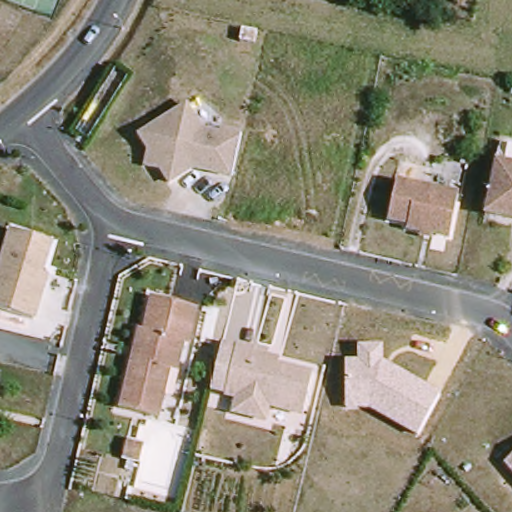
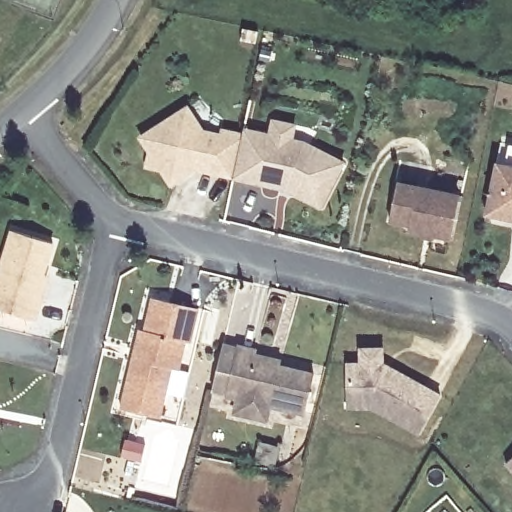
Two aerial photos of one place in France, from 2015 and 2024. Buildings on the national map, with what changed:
unchanged [(167,181),(157,166),(143,163),(146,148),(137,134),(184,104),(199,127),(217,131),(218,126),(238,131),(235,149),(230,173),(210,169),(190,165),(167,181)]
new [(245,126),(268,132),(272,117),(296,122),(293,138),(346,159),(322,210),(285,189),(234,178),(245,126)]
unchanged [(492,216),(507,144),(512,145),(512,220),(492,216)]
unchanged [(451,240),(410,231),(410,226),(390,222),(398,185),(460,197),(451,240)]
unchanged [(48,286),(38,320),(0,308),(0,284),(17,231),(57,243),(45,280),(48,286)]
unchanged [(200,310),(192,344),(187,343),(180,372),(173,370),(161,420),(121,410),(133,359),(140,331),(145,332),(153,299),(200,310)]
unchanged [(235,409),(238,395),(226,392),(238,342),(257,347),(256,351),(268,354),(281,357),(280,363),(315,371),(305,410),(271,402),(267,417),(235,409)]
unchanged [(383,363),(442,395),(418,437),(368,408),(347,409),(345,363),(358,362),(358,348),(382,346),(383,363)]
unchanged [(506,467),(512,461),(512,473),(506,467)]

